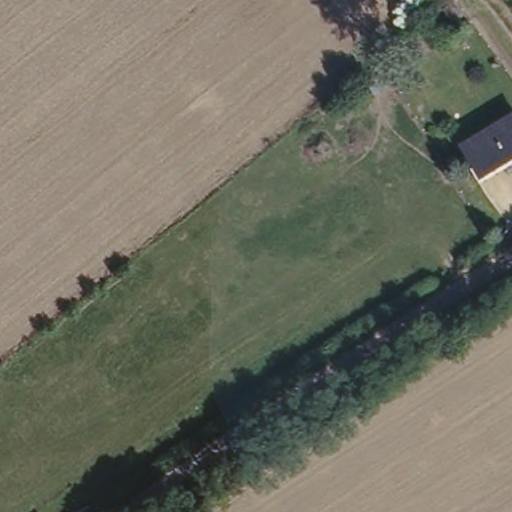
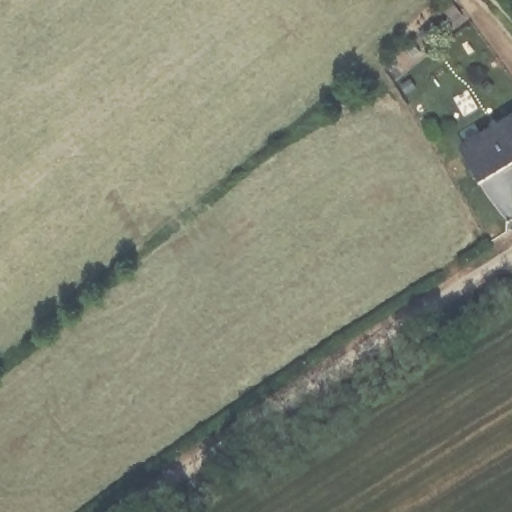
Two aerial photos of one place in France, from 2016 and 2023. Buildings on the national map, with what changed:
unchanged [(512,121),(512,155),(482,173),(459,136),(505,108),(512,121)]

